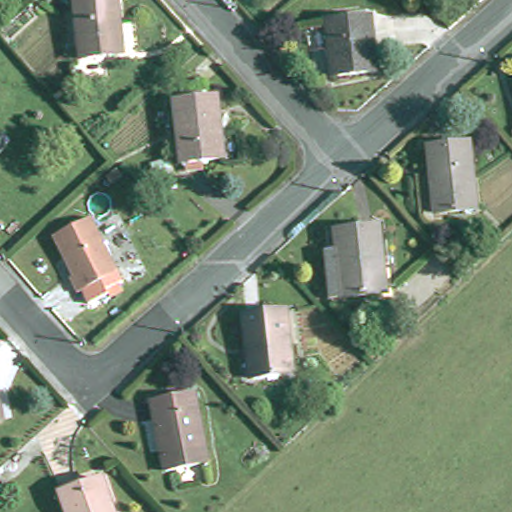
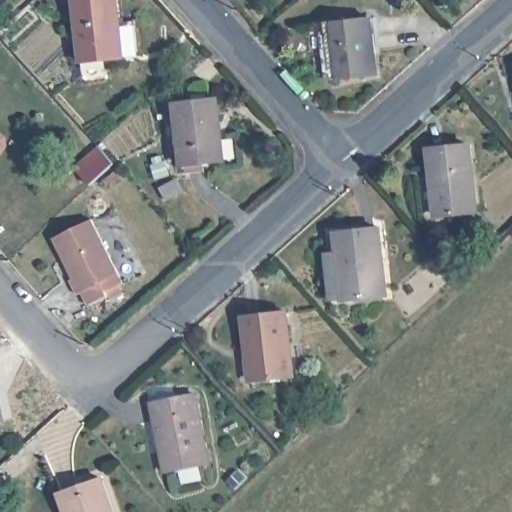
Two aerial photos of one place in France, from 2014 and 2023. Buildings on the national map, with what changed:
unchanged [(81,64),(74,0),(117,0),(124,59),(81,64)]
unchanged [(370,17),(375,72),(332,76),(327,22),(370,17)]
unchanged [(217,97),(222,161),(180,165),(174,101),(217,97)]
unchanged [(466,146),(475,213),(435,217),(426,151),(466,146)]
unchanged [(123,275),(82,296),(75,282),(78,280),(57,239),(95,220),(123,275)]
unchanged [(329,252),(341,250),(339,233),(382,228),(390,295),(346,299),(334,300),(329,252)]
unchanged [(285,314),(292,377),(248,382),(240,318),(285,314)]
unchanged [(150,404),(192,395),(207,464),(165,474),(161,454),(158,444),(150,404)]
unchanged [(99,481),(111,512),(65,512),(59,496),(99,481)]

